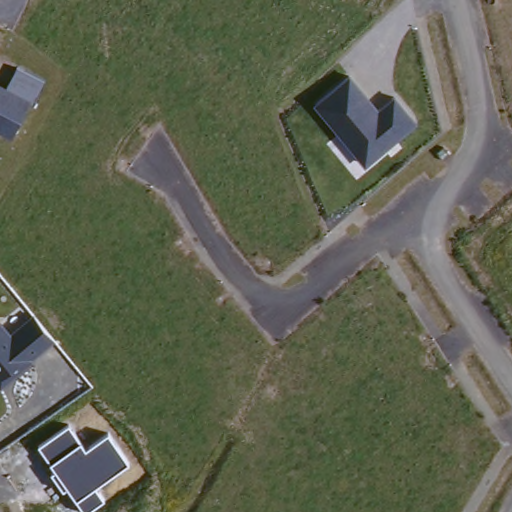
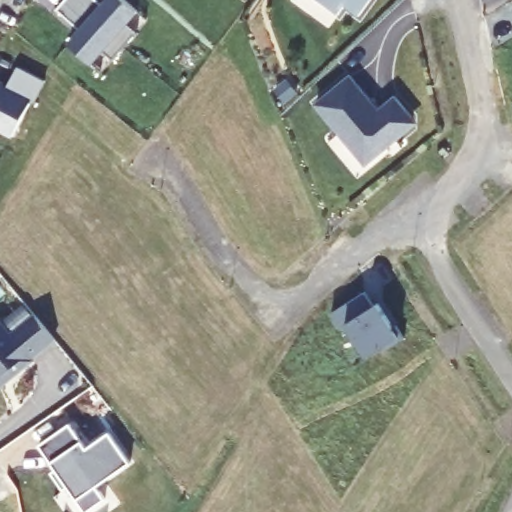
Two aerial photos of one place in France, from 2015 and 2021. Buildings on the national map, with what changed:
new [(80,29),(56,8),(63,0),(98,0),(101,4),(105,0),(127,0),(139,10),(127,24),(136,33),(113,59),(104,50),(92,64),(68,41),(80,29)]
unchanged [(347,8),(341,17),(317,0),(375,0),(361,19),(347,8)]
unchanged [(12,69),(39,80),(11,134),(0,128),(0,86),(2,88),(12,69)]
unchanged [(314,104),(349,73),(379,109),(396,94),(417,123),(365,167),(314,104)]
new [(347,328),(341,332),(330,314),(364,292),(373,307),(378,304),(392,328),(396,325),(404,340),(385,352),(383,348),(366,359),(347,328)]
unchanged [(0,319),(3,319),(12,333),(37,314),(56,338),(30,359),(33,364),(1,388),(0,386),(0,319)]
unchanged [(68,487),(63,490),(52,473),(56,469),(51,463),(38,446),(70,425),(81,441),(86,449),(110,433),(129,464),(97,487),(105,499),(87,512),(85,512),(68,487)]

